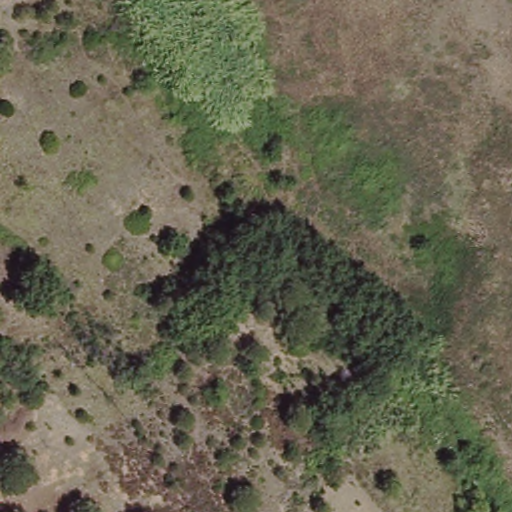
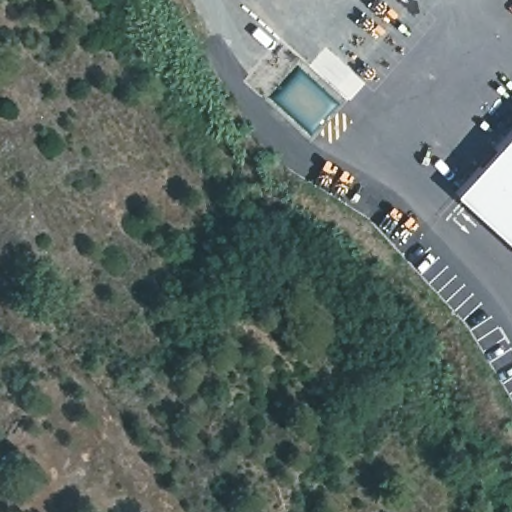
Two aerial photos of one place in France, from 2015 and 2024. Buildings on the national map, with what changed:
new [(512,124),(512,248),(451,192),(512,124)]

